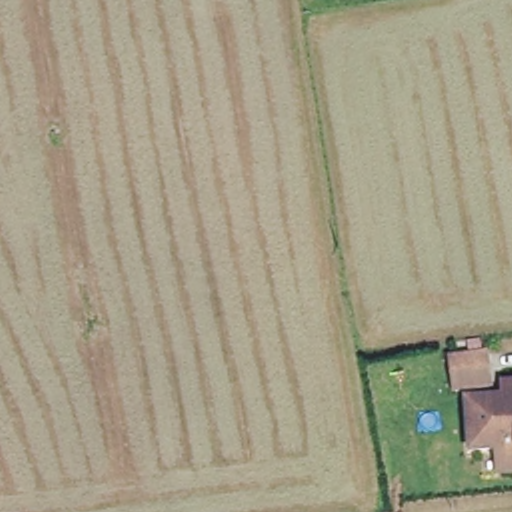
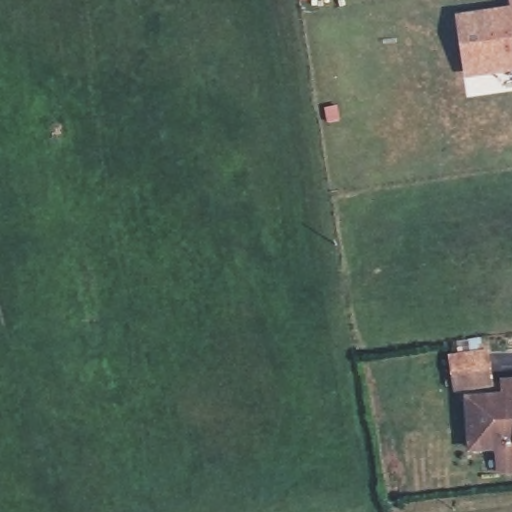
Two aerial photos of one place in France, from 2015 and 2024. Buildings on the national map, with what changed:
new [(485,9),(512,5),(512,60),(492,63),(471,66),(463,12),(485,9)]
unchanged [(482,352),(487,387),(452,391),(447,357),(482,352)]
unchanged [(495,450),(467,451),(465,400),(505,398),(504,382),(512,382),(512,471),(496,472),(495,450)]

